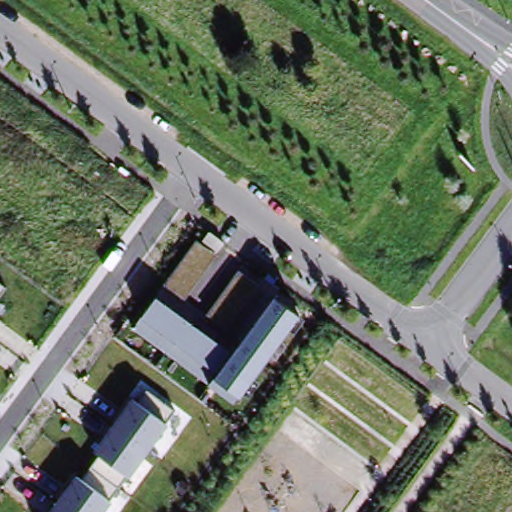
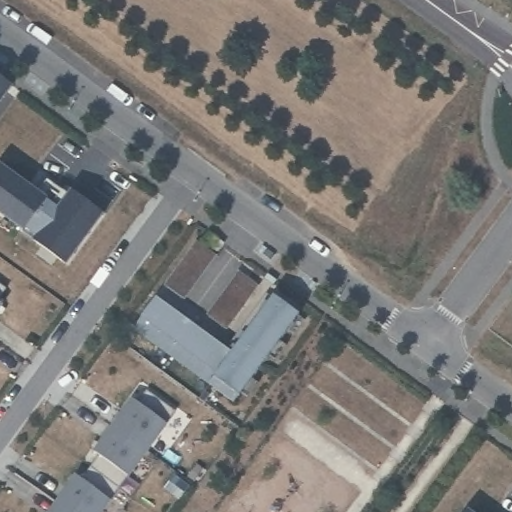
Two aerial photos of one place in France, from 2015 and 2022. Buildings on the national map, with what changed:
new [(11,88),(0,103),(0,80),(11,88)]
new [(0,213),(0,168),(0,167),(47,201),(45,203),(58,212),(72,194),(101,215),(67,262),(36,240),(35,242),(22,233),(23,230),(0,213)]
unchanged [(217,257),(185,301),(165,285),(195,242),(217,257)]
unchanged [(259,289),(226,331),(205,315),(238,272),(259,289)]
unchanged [(5,288),(0,294),(0,284),(5,288)]
unchanged [(233,353),(273,296),(299,315),(239,397),(234,404),(131,329),(140,317),(155,298),(233,353)]
unchanged [(3,305),(0,310),(0,302),(3,305)]
unchanged [(82,480),(99,457),(93,451),(131,399),(138,403),(146,390),(174,412),(101,512),(46,512),(73,474),(82,480)]

